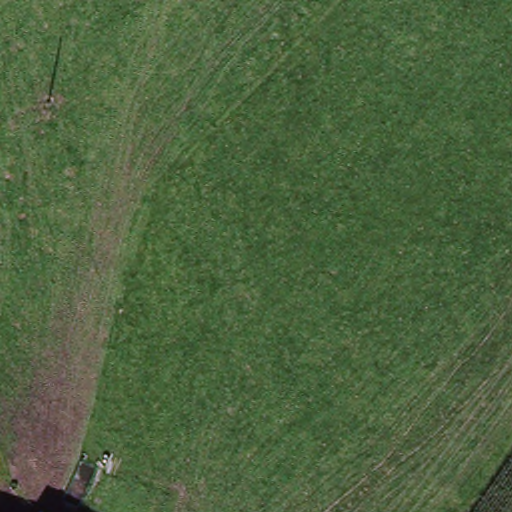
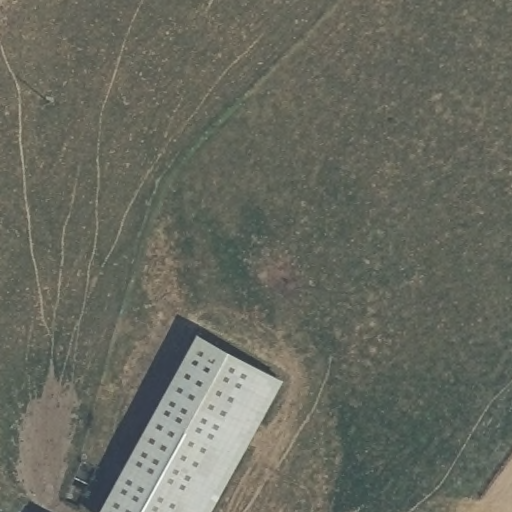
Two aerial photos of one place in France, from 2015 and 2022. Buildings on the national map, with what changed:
new [(200,333),(286,381),(213,512),(101,512),(200,333)]

